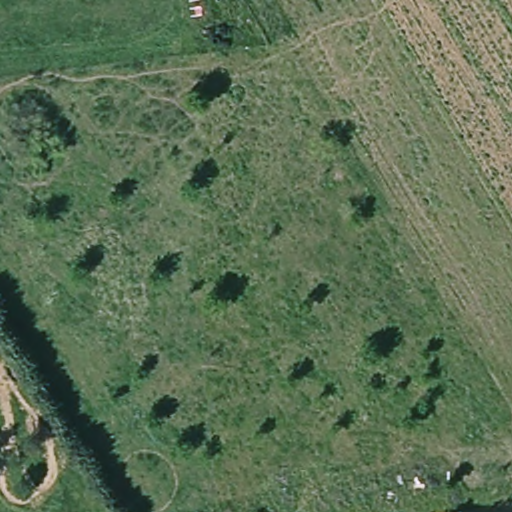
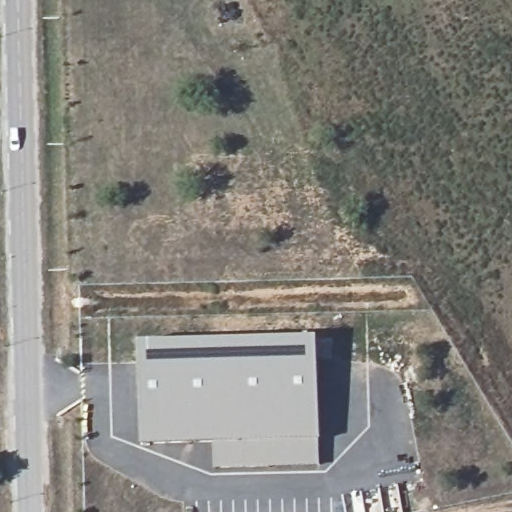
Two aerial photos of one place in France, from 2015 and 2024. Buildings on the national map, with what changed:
new [(214,442),(143,445),(139,343),(318,337),(321,440),(320,465),(215,469),(214,442)]

